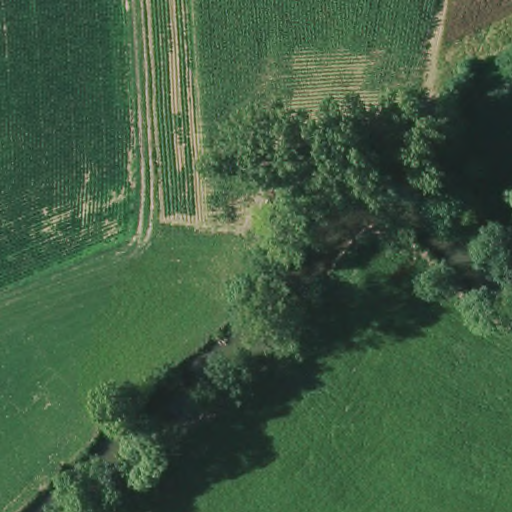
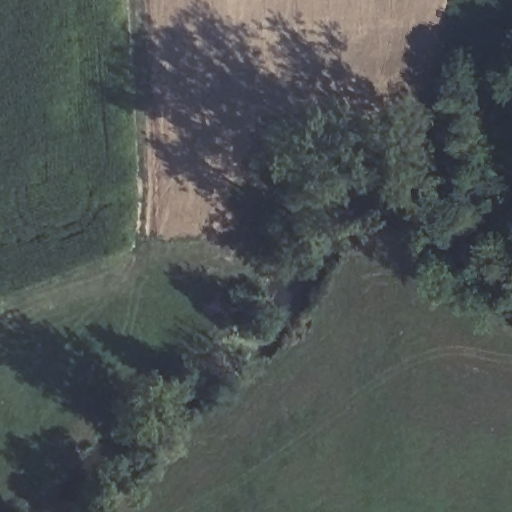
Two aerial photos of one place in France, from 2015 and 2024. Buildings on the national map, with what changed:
[]

